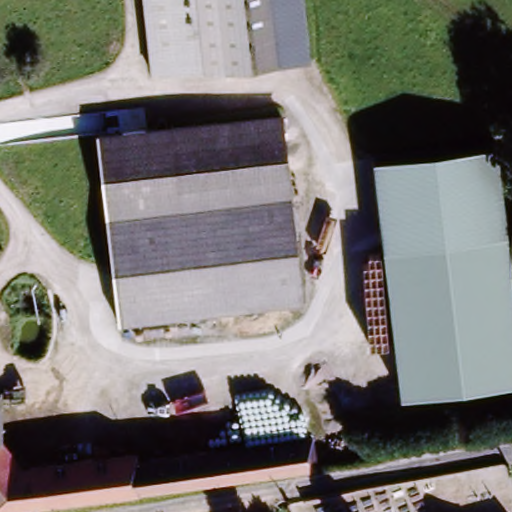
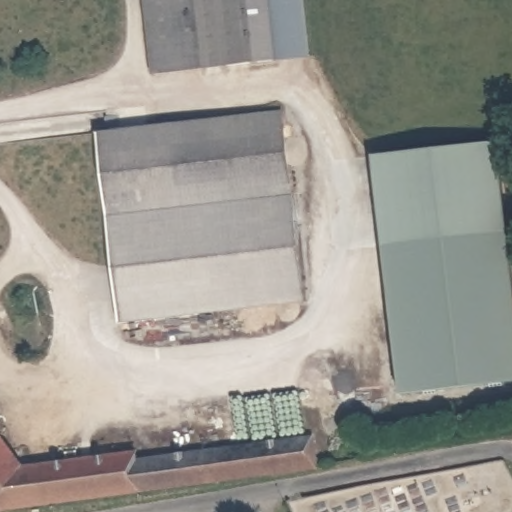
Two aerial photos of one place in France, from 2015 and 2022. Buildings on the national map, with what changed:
unchanged [(152,76),(145,0),(196,0),(203,71),(152,76)]
unchanged [(203,71),(196,0),(302,0),(308,60),(203,71)]
unchanged [(300,301),(110,315),(93,126),(284,113),(300,301)]
unchanged [(512,383),(397,395),(372,156),(496,143),(512,290),(512,383)]
unchanged [(322,461),(0,511),(0,434),(2,434),(22,464),(139,443),(142,454),(317,429),(322,461)]
unchanged [(0,434),(0,430),(2,434),(0,434)]

